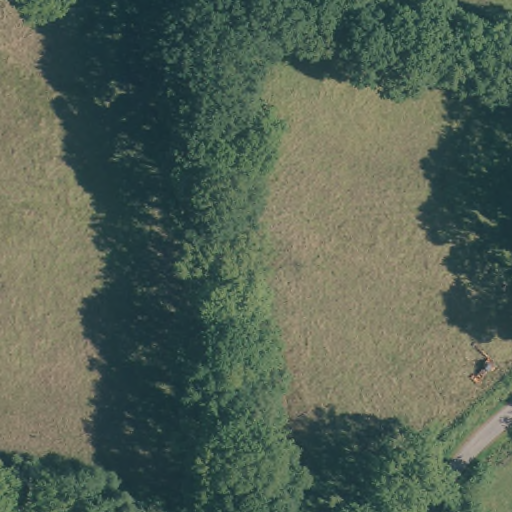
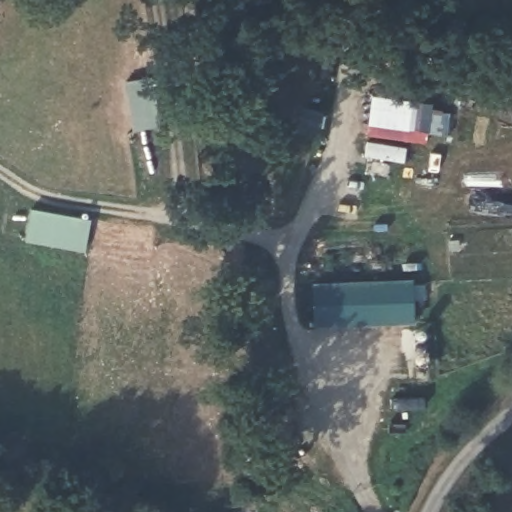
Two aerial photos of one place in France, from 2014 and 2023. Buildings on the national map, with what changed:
new [(312,283),(411,279),(413,321),(312,326),(312,283)]

